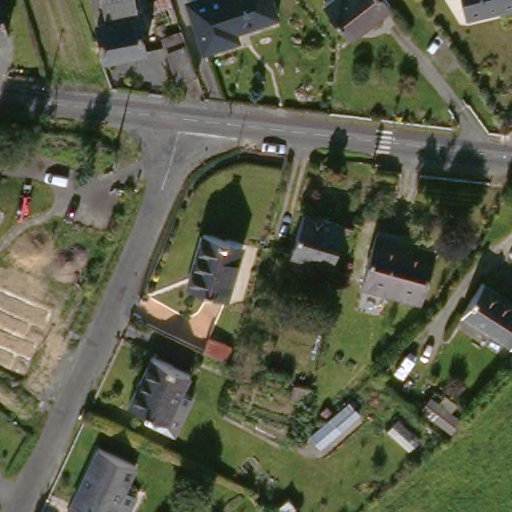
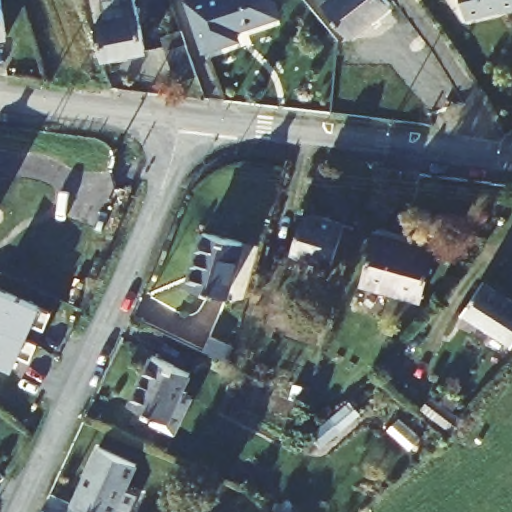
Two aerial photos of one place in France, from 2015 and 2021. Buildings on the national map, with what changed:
unchanged [(8,31),(0,32),(0,0),(5,0),(8,31)]
unchanged [(145,33),(149,52),(110,58),(102,0),(142,0),(145,33)]
unchanged [(284,9),(240,26),(243,37),(211,47),(194,0),(280,0),(284,9)]
unchanged [(395,15),(353,39),(331,0),(386,0),(395,15)]
unchanged [(512,7),(501,9),(501,6),(467,12),(465,0),(512,0),(512,7)]
unchanged [(182,79),(167,42),(188,37),(201,76),(182,79)]
unchanged [(350,224),(338,266),(299,253),(311,213),(350,224)]
unchanged [(197,267),(209,227),(247,238),(231,294),(203,286),(192,283),(197,267)]
unchanged [(438,247),(424,302),(366,286),(381,231),(438,247)]
unchanged [(512,344),(467,308),(493,279),(512,295),(512,344)]
new [(51,313),(44,330),(31,325),(24,339),(37,345),(29,362),(16,357),(10,371),(0,367),(0,290),(51,313)]
unchanged [(206,329),(228,340),(222,354),(199,341),(206,329)]
unchanged [(191,373),(183,390),(196,396),(178,429),(147,415),(150,409),(129,400),(151,356),(191,373)]
unchanged [(462,422),(450,411),(439,399),(450,388),(463,399),(473,409),(462,422)]
unchanged [(317,431),(336,415),(346,427),(327,442),(317,431)]
unchanged [(71,512),(100,452),(137,467),(129,483),(142,489),(132,512),(71,512)]

